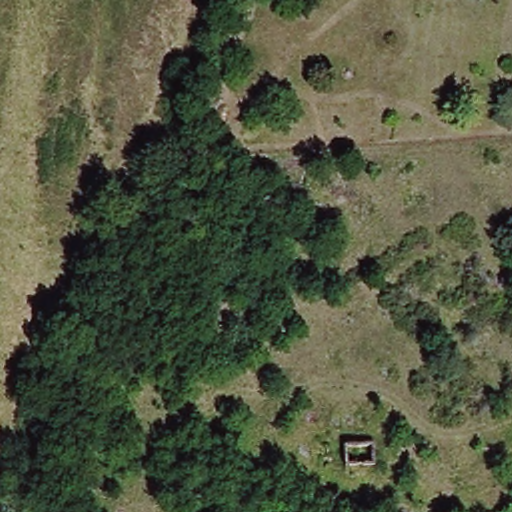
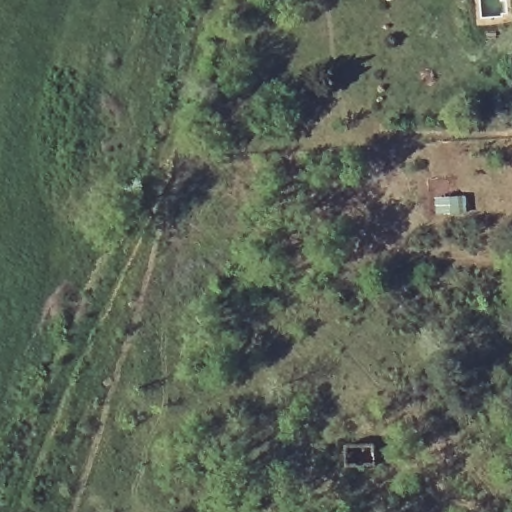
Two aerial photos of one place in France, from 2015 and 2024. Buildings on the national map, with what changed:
unchanged [(322,479),(322,459),(322,454),(356,453),(357,478),(322,479)]
unchanged [(290,459),(303,459),(303,479),(290,479),(290,459)]

